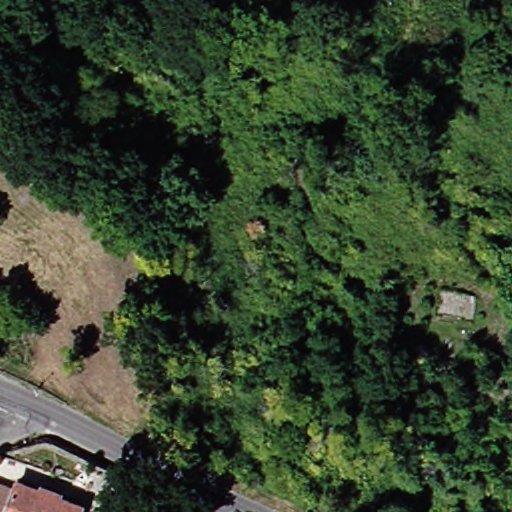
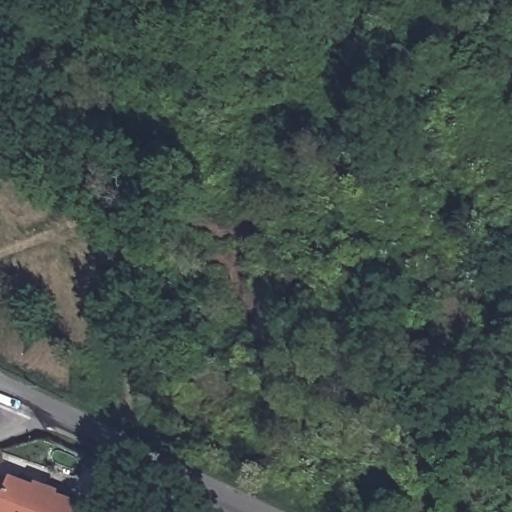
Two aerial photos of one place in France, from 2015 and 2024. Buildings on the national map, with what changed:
unchanged [(15,487),(19,476),(79,502),(76,512),(0,512),(0,480),(15,487)]

